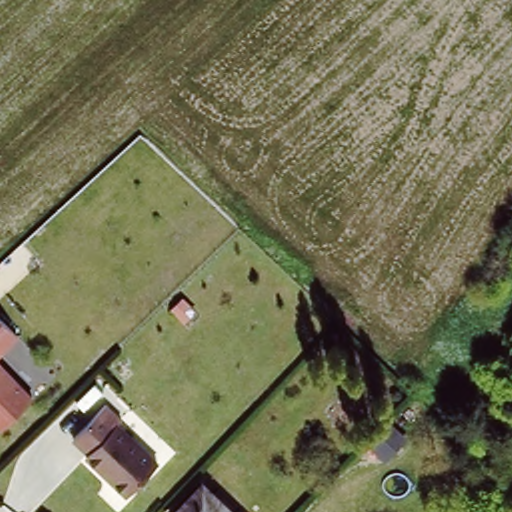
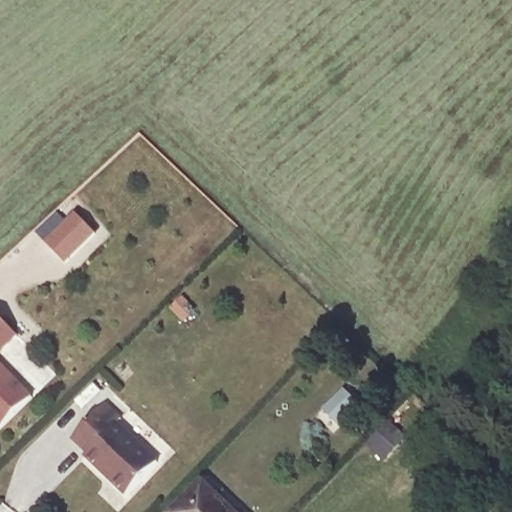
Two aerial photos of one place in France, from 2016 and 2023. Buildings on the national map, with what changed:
new [(75,210),(95,229),(67,258),(47,239),(75,210)]
unchanged [(0,360),(0,319),(19,340),(0,360)]
unchanged [(0,429),(0,363),(32,397),(0,429)]
unchanged [(118,412),(113,417),(156,455),(125,488),(83,451),(86,448),(70,434),(102,398),(118,412)]
unchanged [(201,482),(233,512),(173,512),(201,482)]

